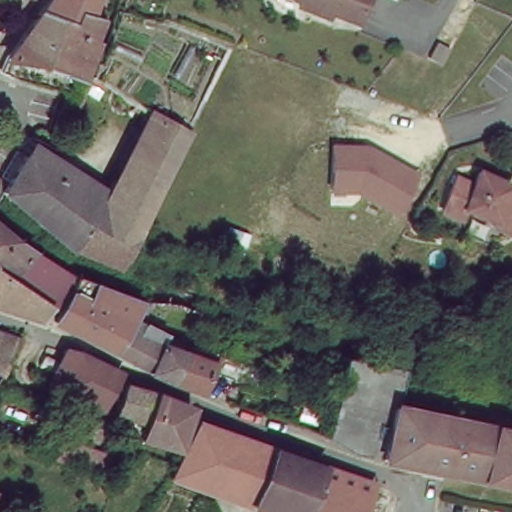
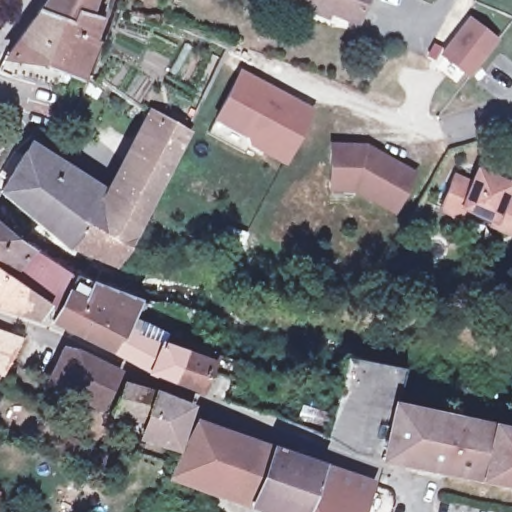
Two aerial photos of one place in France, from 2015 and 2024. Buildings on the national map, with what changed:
unchanged [(78,5),(71,11),(39,1),(40,0),(98,0),(97,6),(96,8),(78,5)]
unchanged [(366,0),(358,19),(331,8),(327,15),(309,7),(296,1),(296,0),(366,0)]
unchanged [(71,11),(78,5),(96,8),(101,10),(92,36),(96,38),(83,71),(54,56),(9,43),(39,1),(71,11)]
new [(499,41),(472,76),(445,55),(472,20),(499,41)]
unchanged [(9,43),(54,56),(83,71),(76,86),(2,61),(9,43)]
unchanged [(91,76),(108,86),(85,128),(70,120),(91,76)]
new [(297,105),(315,114),(308,126),(288,165),(253,146),(250,138),(219,121),(243,76),(297,105)]
unchanged [(0,197),(0,186),(16,161),(101,212),(150,121),(182,139),(116,270),(72,252),(6,202),(0,197)]
unchanged [(47,150),(32,143),(34,136),(49,144),(47,150)]
unchanged [(327,145),(367,143),(420,172),(397,212),(357,192),(328,193),(327,145)]
unchanged [(470,206),(456,200),(452,210),(434,202),(448,169),(465,176),(471,163),(487,170),(470,206)]
unchanged [(499,188),(512,193),(512,205),(504,224),(487,217),(488,213),(470,206),(487,170),(504,176),(499,188)]
unchanged [(0,312),(0,233),(68,278),(53,307),(39,301),(37,306),(29,322),(0,312)]
unchanged [(112,355),(50,324),(72,279),(113,296),(133,302),(112,355)]
unchanged [(196,398),(170,386),(171,385),(112,355),(133,302),(159,309),(147,343),(181,357),(208,369),(196,398)]
unchanged [(20,331),(0,371),(0,323),(20,331)]
unchanged [(97,420),(44,395),(60,358),(102,379),(112,384),(97,420)]
unchanged [(394,408),(512,434),(512,487),(445,473),(321,447),(344,364),(349,363),(402,376),(394,408)]
unchanged [(175,454),(130,438),(132,427),(115,418),(125,390),(152,398),(188,413),(175,454)]
unchanged [(373,492),(365,512),(245,512),(167,483),(175,465),(192,425),(373,492)]
unchanged [(104,460),(97,484),(68,471),(51,464),(58,447),(76,452),(92,457),(104,460)]

